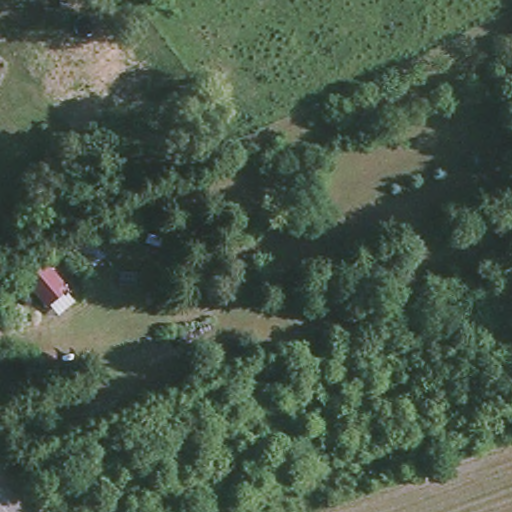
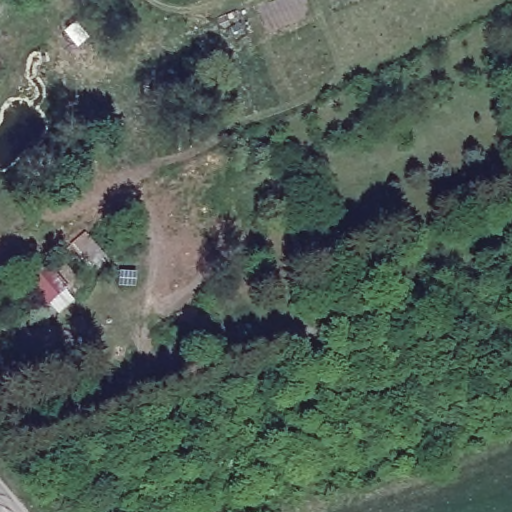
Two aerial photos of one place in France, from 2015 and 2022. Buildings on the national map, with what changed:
unchanged [(66,293),(42,309),(22,275),(48,256),(66,293)]

